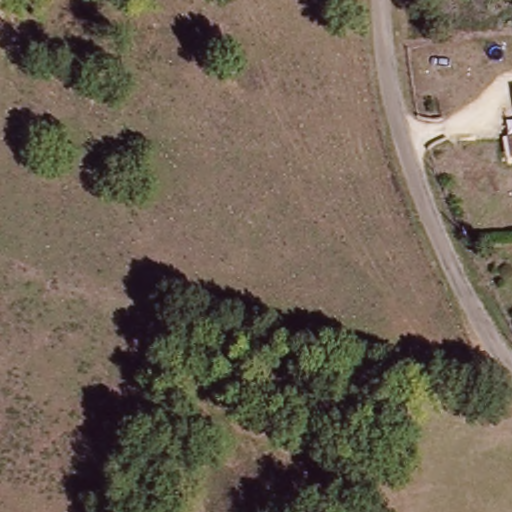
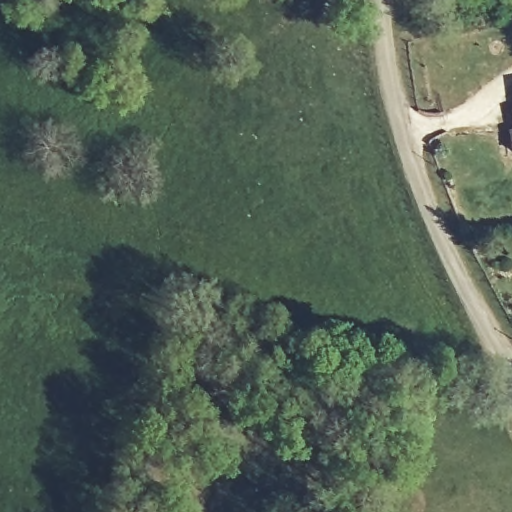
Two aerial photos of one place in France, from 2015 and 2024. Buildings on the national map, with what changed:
unchanged [(512,110),(512,119),(511,111),(512,110)]
unchanged [(507,133),(512,131),(512,154),(510,155),(507,133)]

